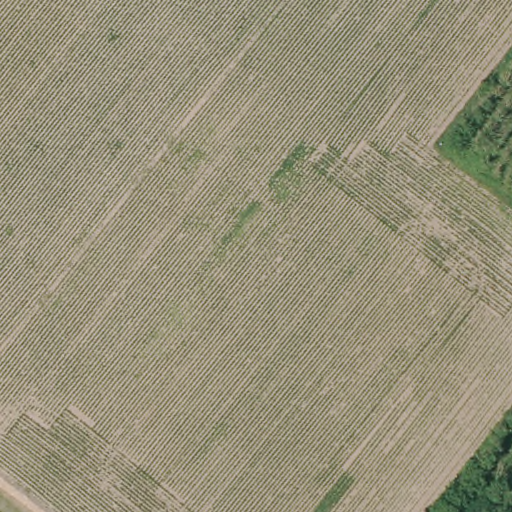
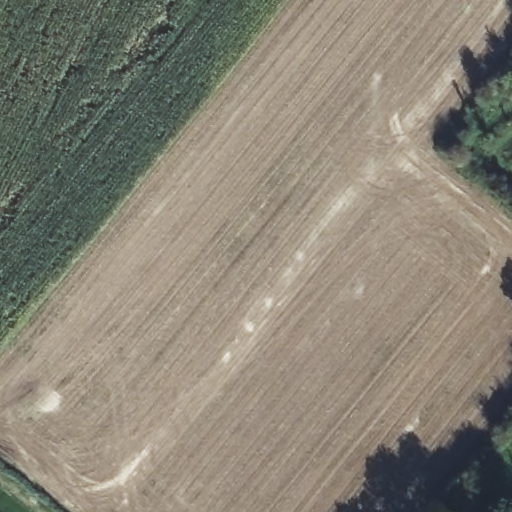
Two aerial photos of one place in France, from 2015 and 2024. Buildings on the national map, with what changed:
[]

